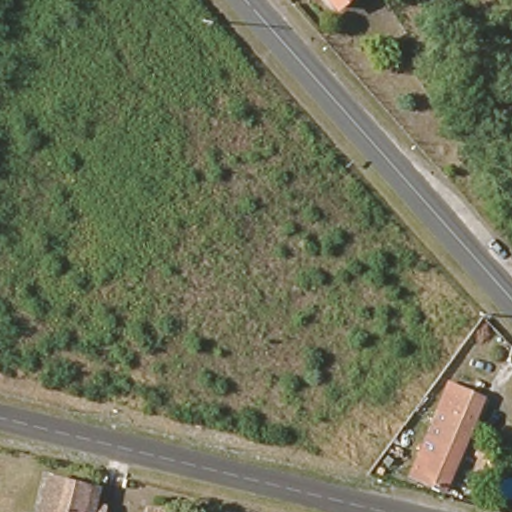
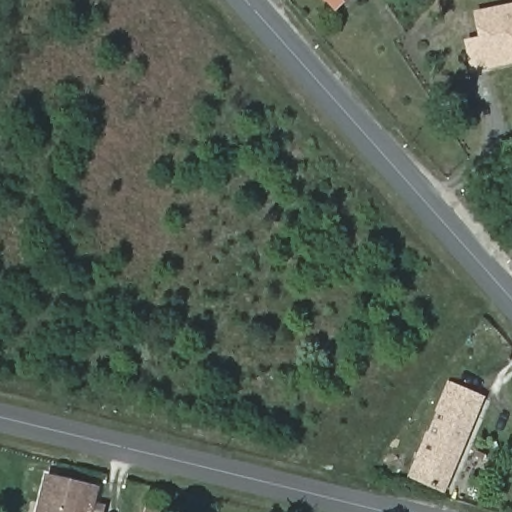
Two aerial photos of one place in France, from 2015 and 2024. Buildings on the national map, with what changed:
unchanged [(342,0),(334,7),(328,0),(342,0)]
new [(486,38),(481,13),(512,8),(512,55),(489,60),(490,65),(475,67),(471,41),(486,38)]
unchanged [(447,489),(413,476),(454,386),(486,400),(447,489)]
unchanged [(89,512),(38,512),(47,473),(95,484),(89,512)]

